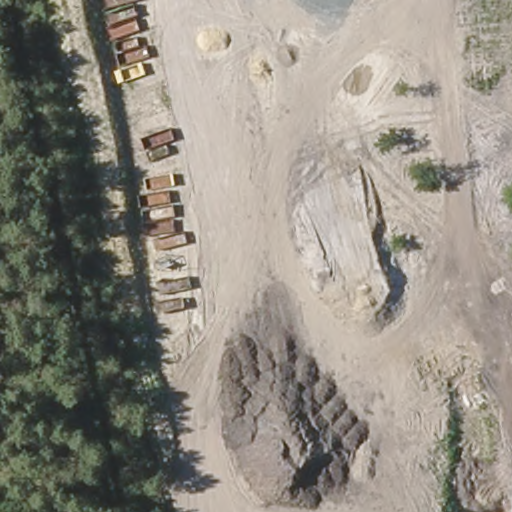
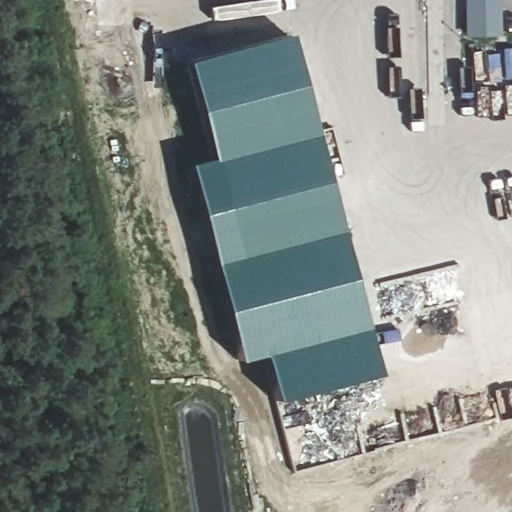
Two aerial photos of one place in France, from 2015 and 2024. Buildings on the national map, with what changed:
new [(496,3),(497,33),(467,34),(467,3),(496,3)]
new [(282,37),(307,134),(205,161),(180,64),(282,37)]
new [(187,165),(205,161),(307,134),(313,133),(376,373),(272,400),(260,354),(233,360),(187,165)]

